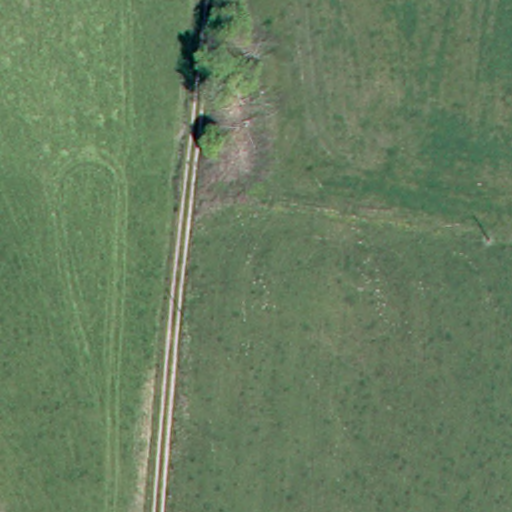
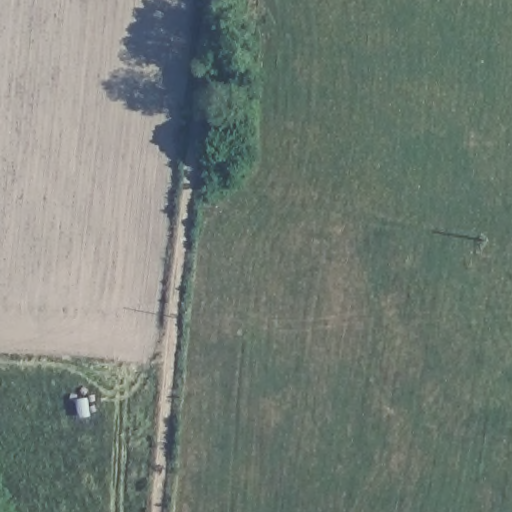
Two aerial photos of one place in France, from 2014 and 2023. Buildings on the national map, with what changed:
[]

